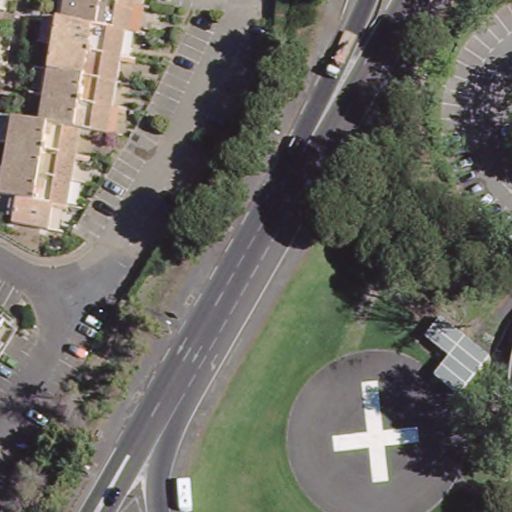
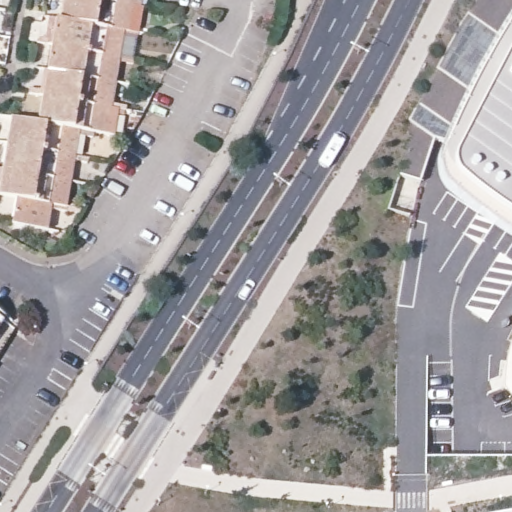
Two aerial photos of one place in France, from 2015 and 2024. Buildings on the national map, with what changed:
unchanged [(63,17),(66,0),(138,0),(133,30),(128,29),(63,17)]
new [(460,198),(442,184),(435,170),(432,157),(432,143),(438,127),(460,83),(468,65),(479,45),(489,26),(506,0),(512,0),(512,236),(490,223),(460,198)]
unchanged [(111,132),(84,127),(42,121),(60,17),(63,17),(128,29),(111,132)]
unchanged [(15,223),(19,197),(2,194),(14,116),(42,121),(84,127),(71,205),(56,203),(51,229),(15,223)]
unchanged [(0,325),(0,311),(7,316),(0,325)]
unchanged [(495,392),(492,380),(508,377),(512,355),(512,390),(511,389),(495,392)]

